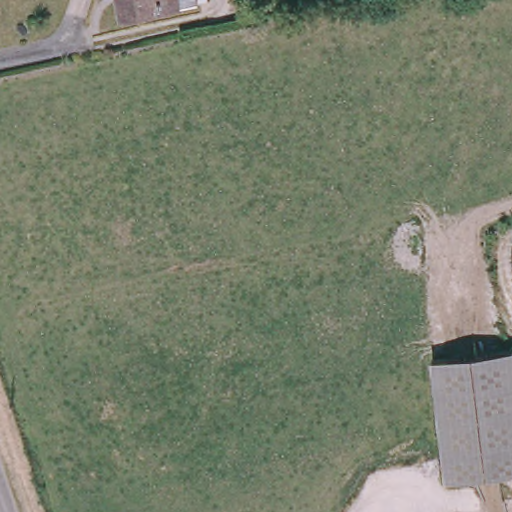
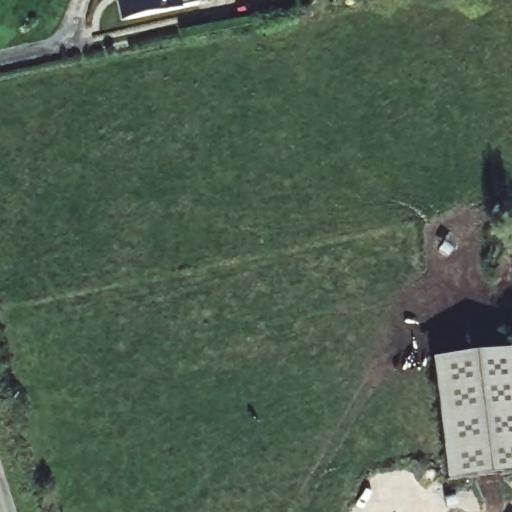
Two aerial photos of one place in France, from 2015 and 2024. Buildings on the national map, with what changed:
unchanged [(192,7),(121,20),(116,0),(190,0),(192,7)]
unchanged [(512,347),(512,470),(447,477),(434,356),(512,347)]

